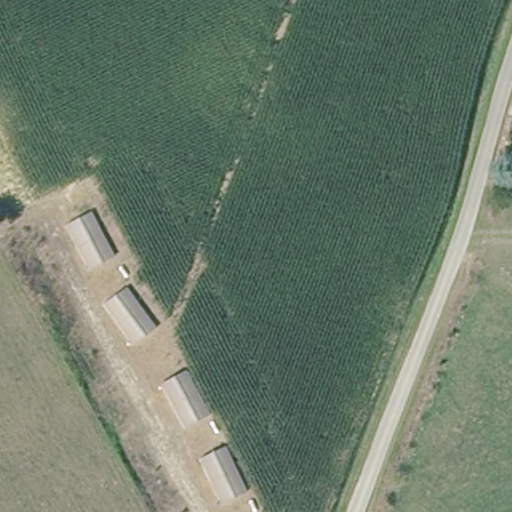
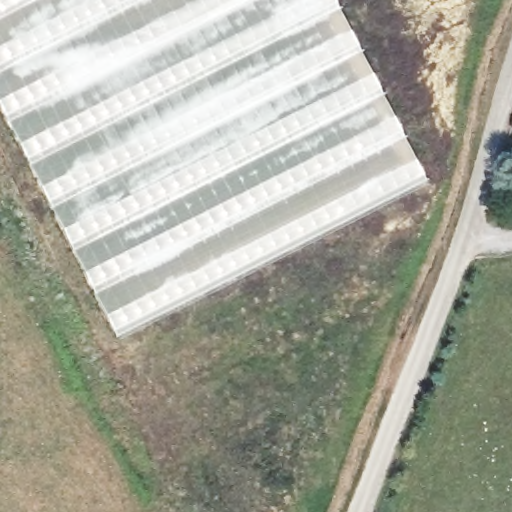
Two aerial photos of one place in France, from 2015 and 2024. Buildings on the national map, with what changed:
new [(0,106),(0,0),(334,0),(425,180),(116,336),(0,106)]

